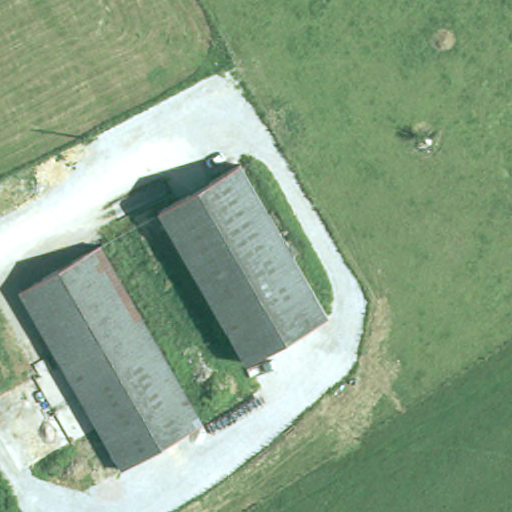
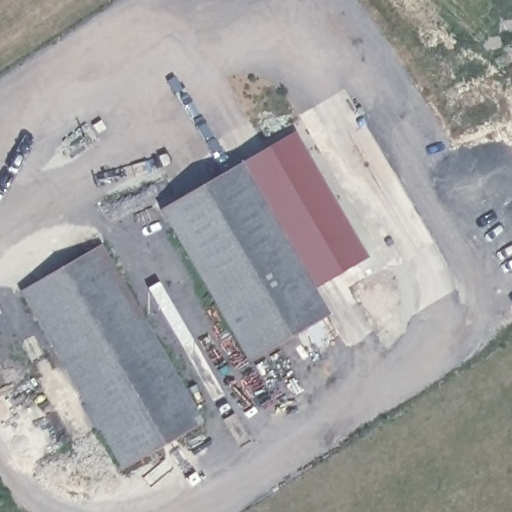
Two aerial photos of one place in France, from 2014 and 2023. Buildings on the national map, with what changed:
new [(245,163),(244,161),(267,148),(295,131),(367,257),(337,270),(340,275),(318,286),(245,163)]
unchanged [(245,163),(337,317),(253,368),(161,213),(245,163)]
unchanged [(107,251),(210,428),(129,478),(25,298),(107,251)]

